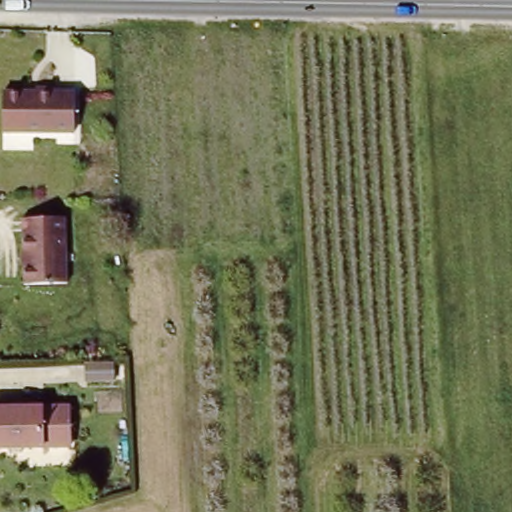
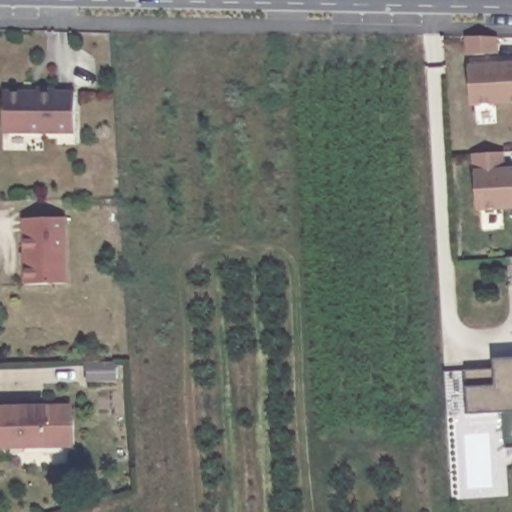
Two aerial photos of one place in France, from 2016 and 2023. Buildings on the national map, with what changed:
new [(469,64),(512,62),(512,103),(472,106),(469,64)]
unchanged [(37,89),(37,85),(55,84),(55,88),(75,87),(77,127),(5,130),(3,90),(37,89)]
new [(475,169),(472,154),(506,152),(507,167),(512,167),(512,206),(477,210),(475,169)]
unchanged [(63,227),(65,290),(25,292),(22,228),(63,227)]
new [(493,360),(512,358),(512,448),(504,449),(502,413),(467,415),(446,417),(443,371),(464,370),(493,368),(493,360)]
unchanged [(113,360),(113,378),(86,378),(85,361),(113,360)]
unchanged [(76,447),(10,449),(0,449),(0,409),(9,409),(75,407),(76,447)]

